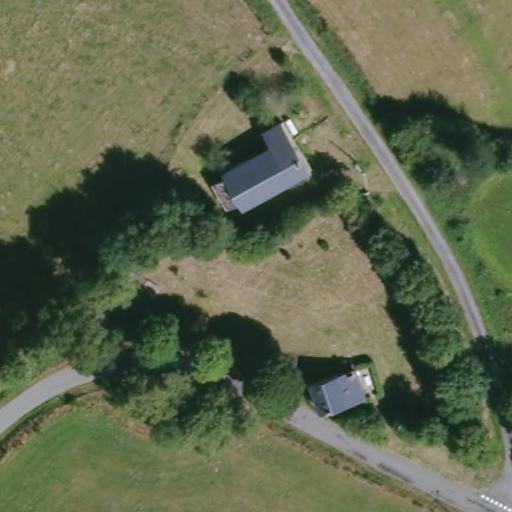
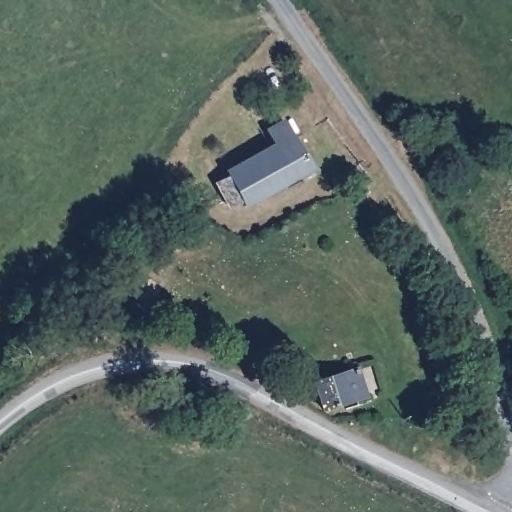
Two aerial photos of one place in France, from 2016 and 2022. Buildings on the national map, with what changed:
unchanged [(277,146),(270,134),(288,123),(319,175),(275,199),(252,161),(277,146)]
unchanged [(275,199),(252,211),(246,202),(235,209),(223,187),(233,181),(230,175),(252,161),(275,199)]
unchanged [(325,402),(320,381),(367,369),(375,400),(343,408),(327,413),(325,402)]
unchanged [(306,375),(318,371),(320,381),(308,385),(306,375)]

